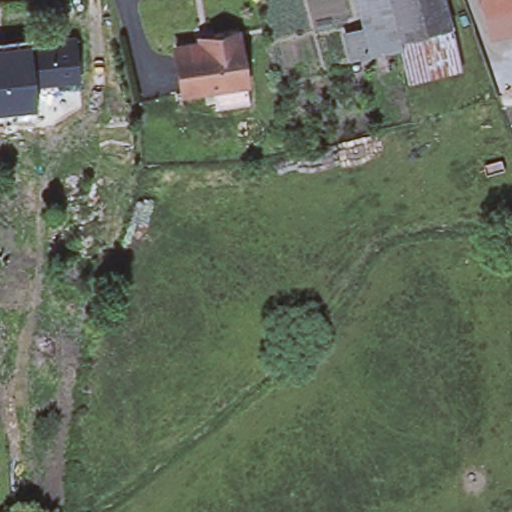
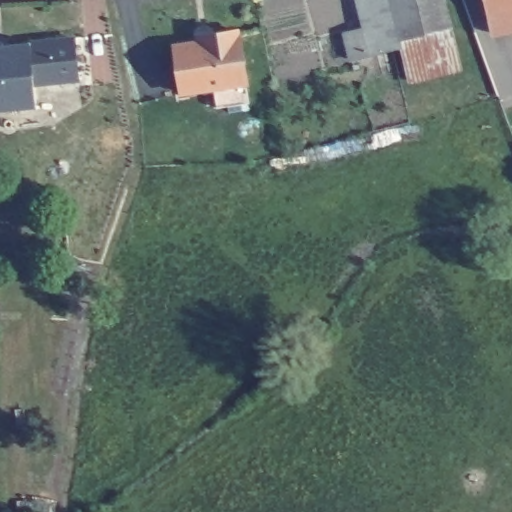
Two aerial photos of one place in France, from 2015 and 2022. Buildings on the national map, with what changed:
unchanged [(395,38),(397,48),(366,55),(352,0),(385,0),(395,38)]
unchanged [(444,25),(395,38),(385,0),(437,0),(444,25)]
unchanged [(491,5),(490,0),(512,0),(512,22),(495,25),(491,5)]
unchanged [(455,67),(405,79),(397,48),(395,38),(444,25),(455,67)]
unchanged [(221,86),(180,92),(173,44),(197,41),(196,35),(211,33),(235,30),(241,74),(243,83),(221,86)]
unchanged [(68,32),(72,74),(38,78),(26,79),(22,37),(68,32)]
unchanged [(22,37),(26,79),(28,99),(0,102),(0,39),(22,37)]

